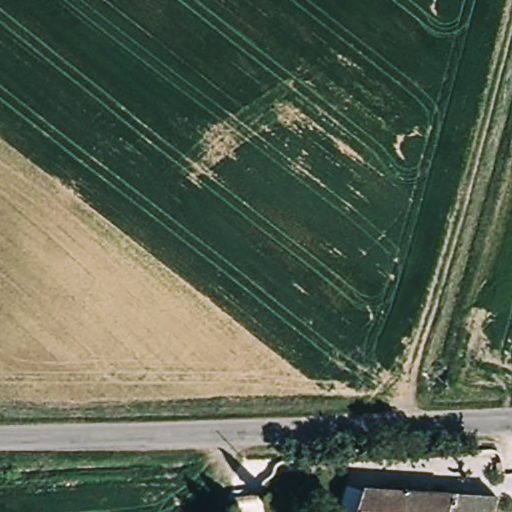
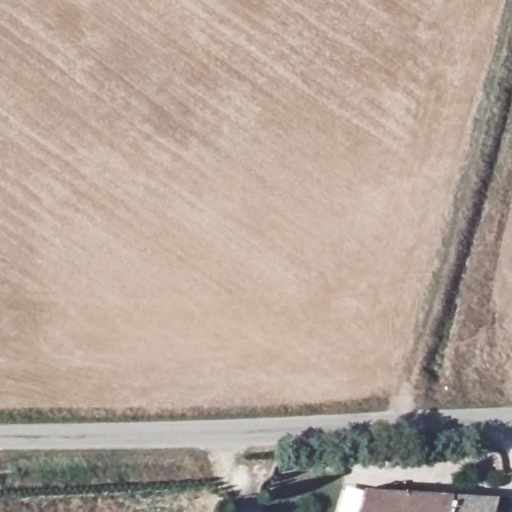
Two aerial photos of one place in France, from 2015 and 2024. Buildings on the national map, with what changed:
unchanged [(360,496),(377,496),(379,490),(401,488),(400,498),(490,504),(488,512),(356,512),(360,496)]

